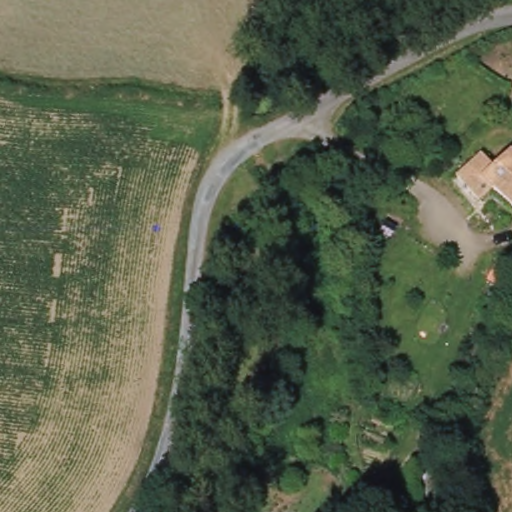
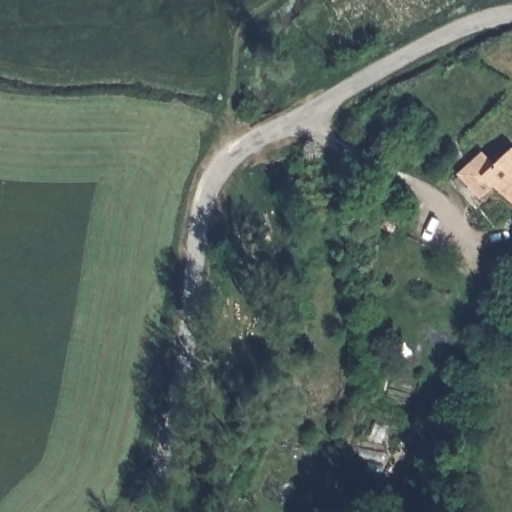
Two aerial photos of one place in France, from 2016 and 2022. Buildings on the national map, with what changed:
unchanged [(483,193),(472,185),(480,171),(511,151),(512,152),(512,204),(492,185),(483,193)]

